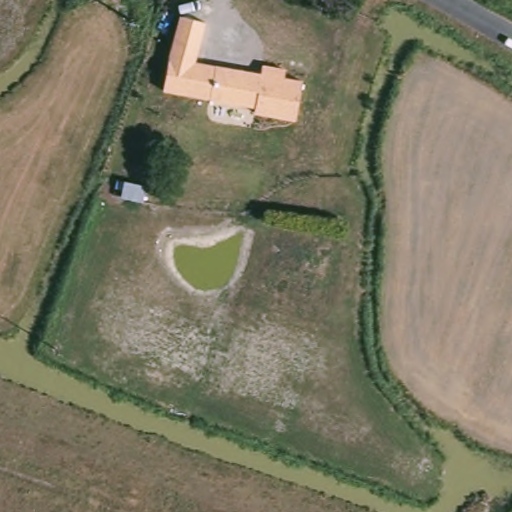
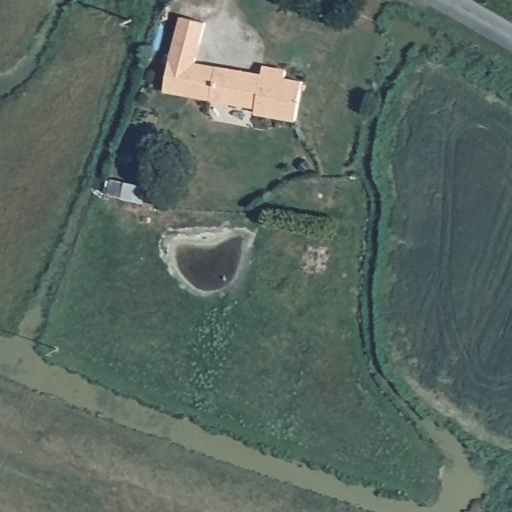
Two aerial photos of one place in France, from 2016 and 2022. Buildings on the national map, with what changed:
unchanged [(205,21),(196,61),(260,70),(261,63),(285,67),(285,76),(302,79),(295,121),(250,112),(253,105),(161,90),(178,16),(205,21)]

